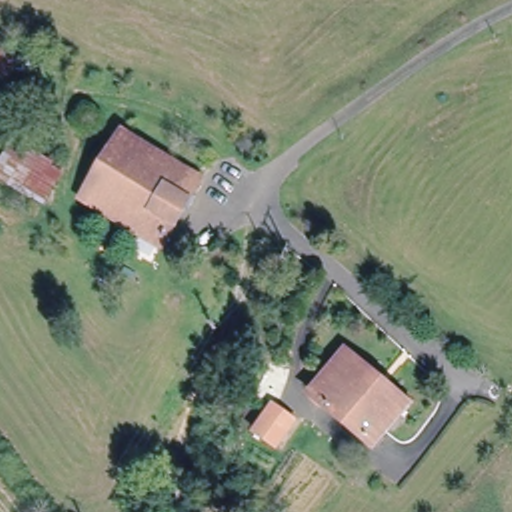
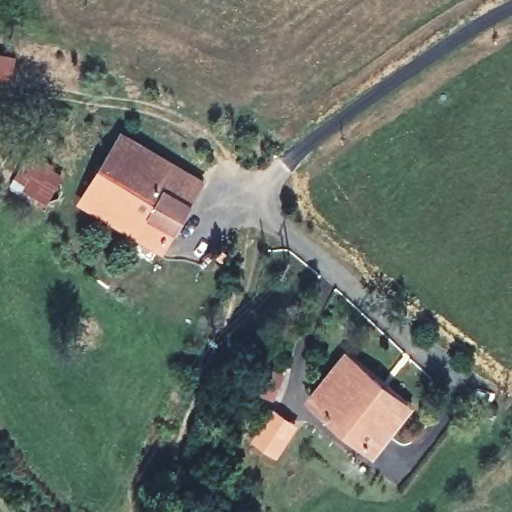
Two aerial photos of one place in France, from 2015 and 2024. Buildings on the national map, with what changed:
unchanged [(156,152),(174,126),(217,149),(198,178),(156,152)]
unchanged [(118,128),(156,152),(198,178),(156,246),(77,196),(118,128)]
unchanged [(56,157),(52,166),(62,172),(45,204),(0,181),(0,157),(16,134),(56,157)]
unchanged [(336,360),(374,385),(405,407),(398,416),(380,442),(312,395),(336,360)]

